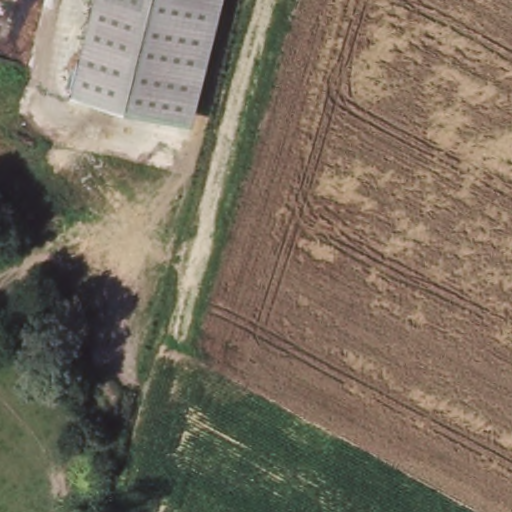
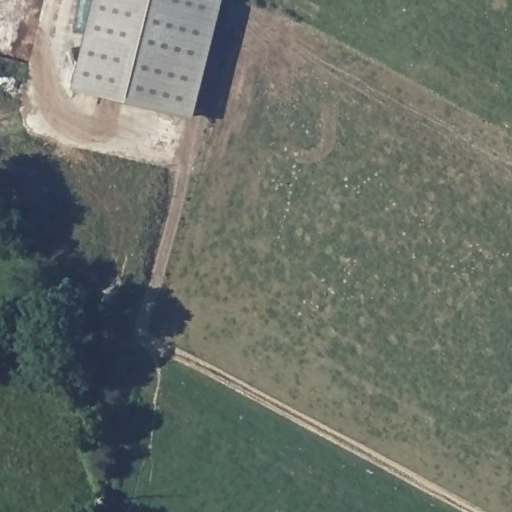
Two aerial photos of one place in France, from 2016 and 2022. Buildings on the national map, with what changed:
unchanged [(191,119),(70,92),(92,0),(221,0),(191,119)]

